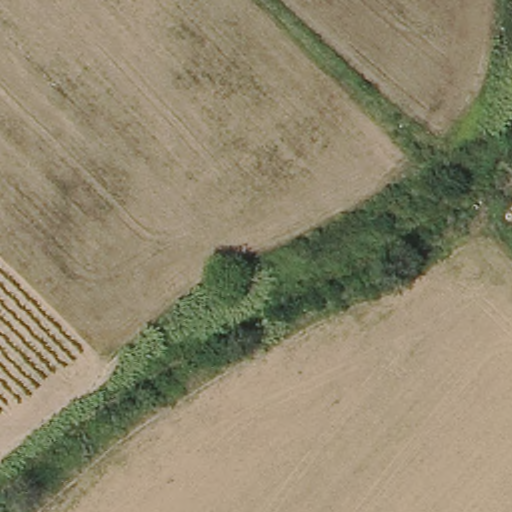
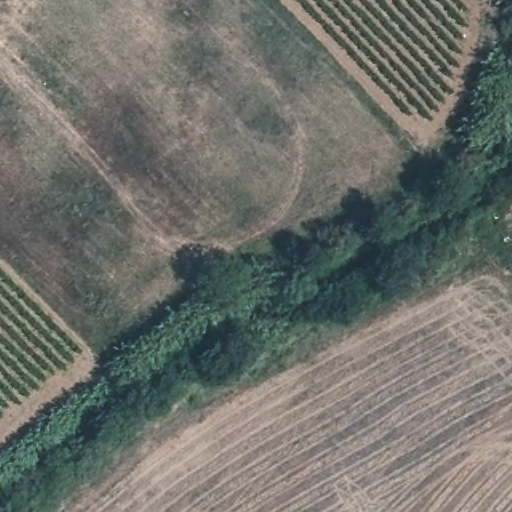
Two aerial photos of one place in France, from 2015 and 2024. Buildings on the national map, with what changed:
[]

